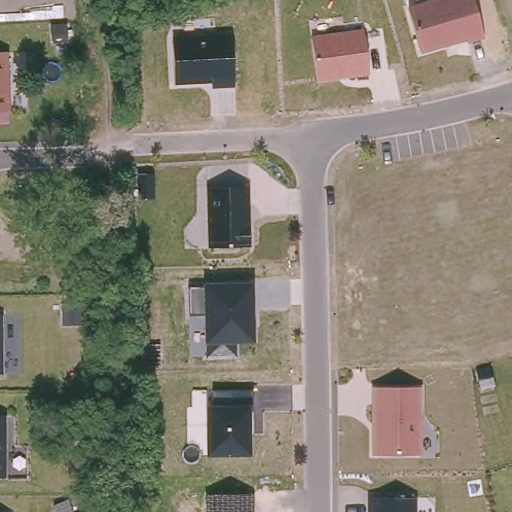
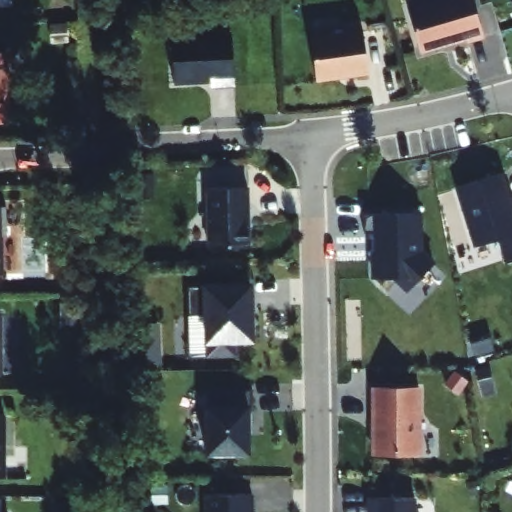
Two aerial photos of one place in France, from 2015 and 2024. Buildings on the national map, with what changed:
unchanged [(433,1),(433,0),(474,0),(484,37),(423,54),(410,8),(433,1)]
unchanged [(365,28),(371,77),(317,84),(311,35),(365,28)]
unchanged [(231,33),(235,87),(213,89),(211,82),(177,84),(174,35),(231,33)]
unchanged [(0,111),(0,53),(10,52),(10,111),(0,111)]
new [(463,186),(506,173),(512,191),(512,236),(481,245),(463,186)]
unchanged [(246,183),(250,245),(211,246),(208,182),(246,183)]
new [(10,238),(5,238),(7,276),(0,276),(0,208),(10,208),(10,238)]
new [(375,278),(373,215),(423,213),(424,249),(435,260),(410,288),(399,278),(375,278)]
unchanged [(205,288),(205,282),(253,282),(255,341),(235,343),(236,357),(208,358),(205,330),(193,331),(192,288),(205,288)]
unchanged [(5,375),(0,375),(0,315),(4,315),(5,375)]
unchanged [(421,389),(421,458),(372,458),(370,387),(421,389)]
unchanged [(248,407),(249,458),(206,458),(203,406),(248,407)]
unchanged [(5,483),(0,482),(0,419),(5,419),(5,483)]
unchanged [(253,512),(207,512),(207,495),(253,496),(253,512)]
unchanged [(415,512),(368,512),(368,496),(415,497),(415,512)]
unchanged [(10,512),(0,512),(0,510),(10,510),(10,512)]

